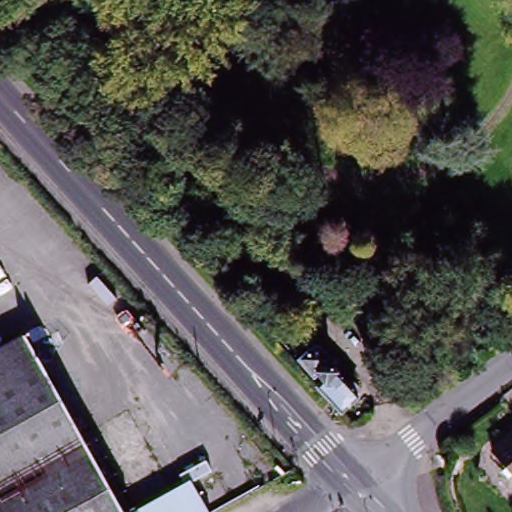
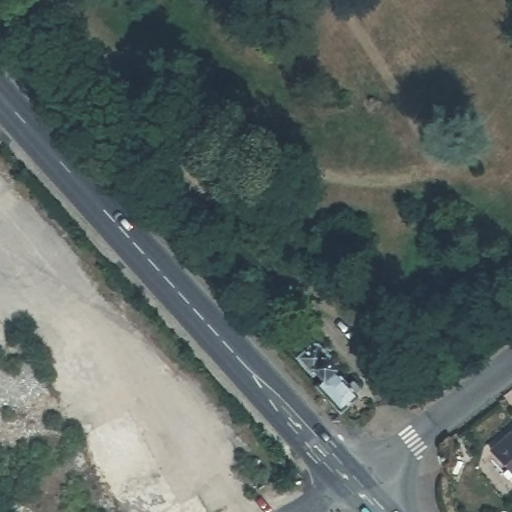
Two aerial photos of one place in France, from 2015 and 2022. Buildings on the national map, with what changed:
demolished [(20,337),(81,445),(95,468),(120,512),(0,512),(0,348),(20,337)]
unchanged [(315,392),(322,386),(316,380),(312,382),(296,363),(312,350),(316,350),(330,365),(330,368),(328,370),(333,376),(335,375),(358,403),(340,420),(315,392)]
unchanged [(512,476),(487,452),(512,429),(512,476)]

